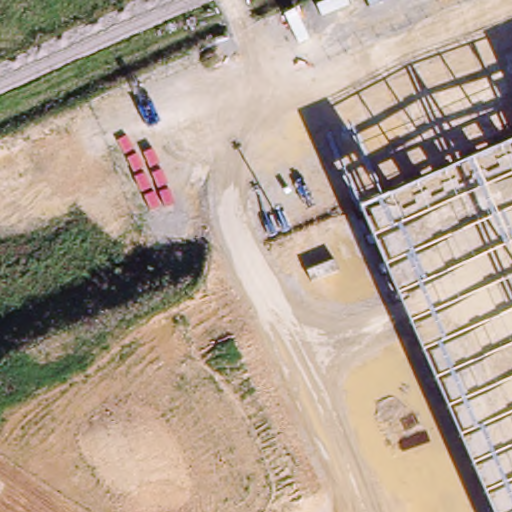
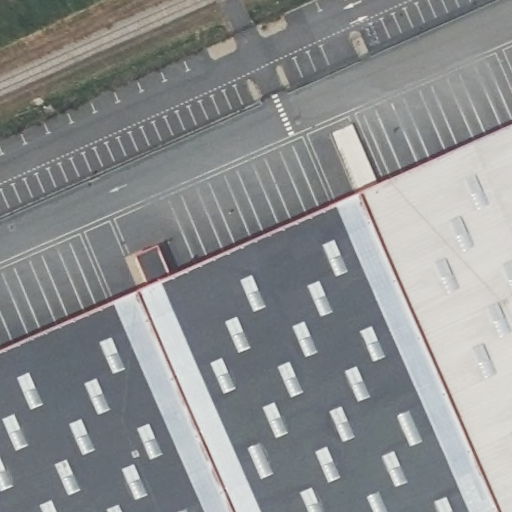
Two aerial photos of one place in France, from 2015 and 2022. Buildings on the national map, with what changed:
unchanged [(361,207),(512,141),(512,512),(494,512),(361,207)]
new [(0,362),(361,207),(494,512),(0,512),(0,362)]

